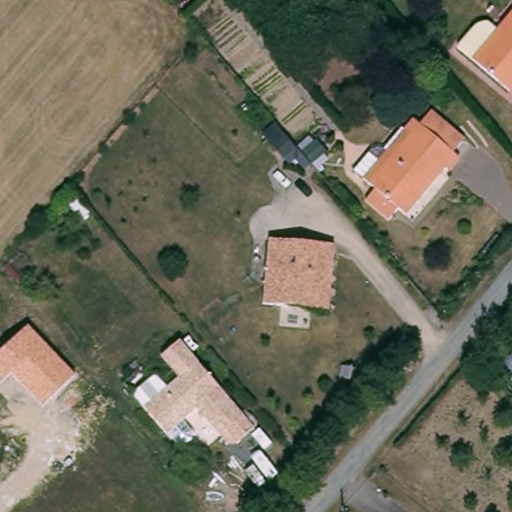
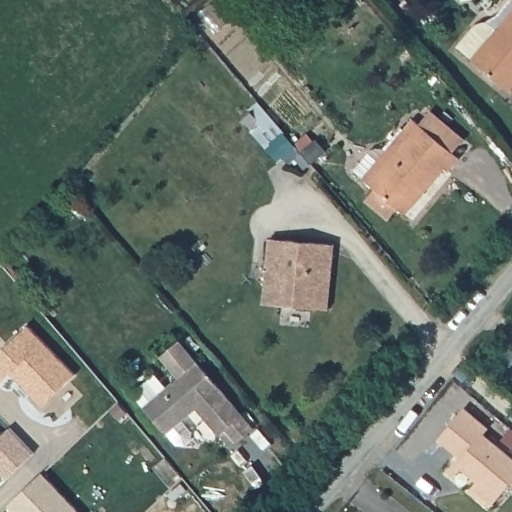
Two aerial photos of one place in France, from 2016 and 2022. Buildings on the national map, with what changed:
unchanged [(483,29),(486,26),(490,25),(493,26),(504,34),(512,23),(512,84),(482,64),(466,52),(480,32),(483,29)]
unchanged [(452,174),(448,171),(407,215),(400,209),(390,219),(367,199),(378,187),(357,168),(380,144),(386,149),(405,129),(409,133),(421,121),(428,128),(441,113),(472,140),(458,154),(465,160),(452,174)]
unchanged [(305,148),(292,158),(280,143),(293,133),(305,148)]
unchanged [(335,247),(334,255),(326,311),(262,303),(270,239),(330,247),(335,247)]
unchanged [(74,376),(43,406),(10,374),(0,383),(0,353),(28,328),(74,376)]
unchanged [(180,341),(199,363),(180,377),(161,357),(180,341)]
unchanged [(253,431),(236,444),(225,431),(218,437),(196,409),(165,434),(144,406),(199,363),(253,431)]
new [(512,457),(512,480),(493,505),(475,491),(479,486),(456,466),(462,459),(438,440),(466,408),(488,428),(485,434),(512,457)]
new [(35,448),(6,473),(0,466),(0,433),(11,423),(35,448)]
new [(40,469),(80,512),(16,512),(6,501),(40,469)]

